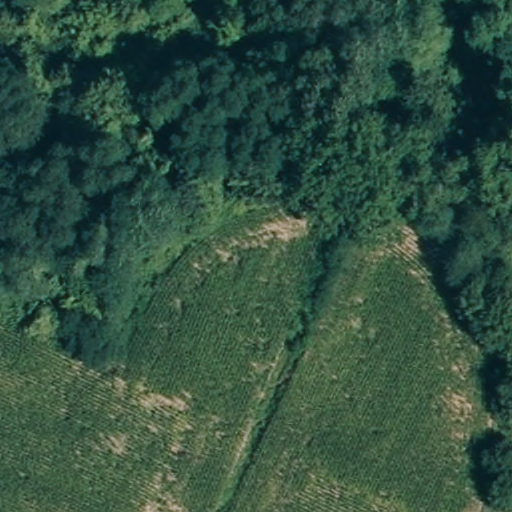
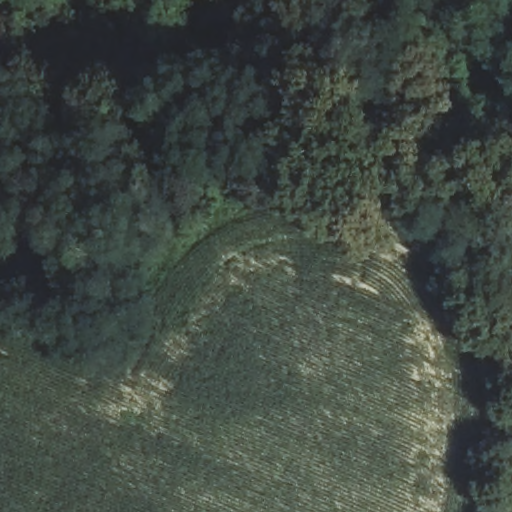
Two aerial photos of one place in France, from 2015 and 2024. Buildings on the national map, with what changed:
unchanged [(149,260),(125,247),(145,214),(168,229),(163,239),(149,260)]
unchanged [(55,259),(60,259),(65,245),(94,254),(67,329),(32,322),(55,259)]

